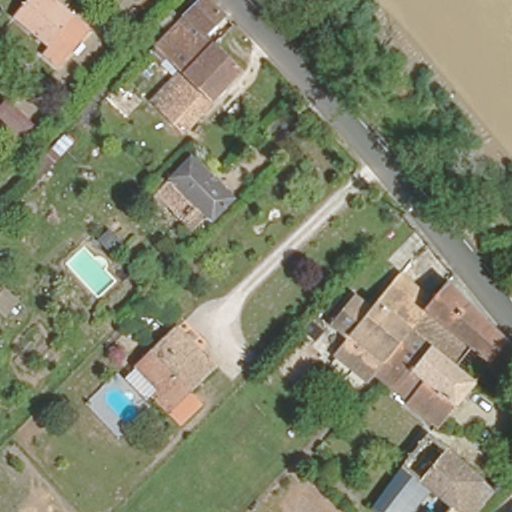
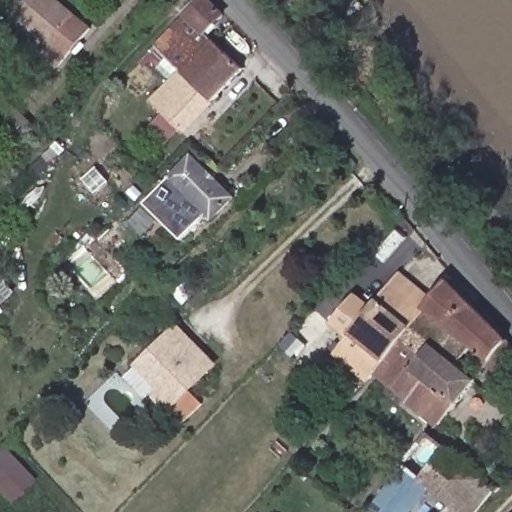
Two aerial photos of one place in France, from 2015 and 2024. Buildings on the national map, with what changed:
unchanged [(57,61),(42,49),(47,43),(14,16),(28,0),(61,0),(87,24),(57,61)]
unchanged [(224,16),(204,38),(210,44),(182,73),(157,48),(203,0),(209,0),(224,16)]
unchanged [(210,44),(240,71),(186,131),(156,102),(182,73),(210,44)]
unchanged [(0,138),(0,115),(7,108),(33,131),(15,153),(0,138)]
unchanged [(213,217),(206,210),(192,225),(157,190),(191,156),(234,195),(213,217)]
unchanged [(93,264),(82,253),(94,242),(105,253),(93,264)]
unchanged [(4,319),(0,316),(0,277),(23,299),(4,319)]
unchanged [(417,386),(391,366),(383,360),(369,376),(337,351),(345,342),(328,329),(348,300),(368,313),(395,279),(427,301),(443,282),(511,355),(489,380),(477,372),(468,382),(448,409),(445,407),(431,426),(402,405),(417,386)]
unchanged [(134,370),(174,329),(190,344),(212,365),(203,375),(173,407),(134,370)]
unchanged [(474,512),(446,512),(448,508),(421,487),(402,512),(374,512),(371,510),(429,433),(492,487),(474,512)]
new [(0,453),(7,447),(38,480),(13,504),(0,490),(0,453)]

